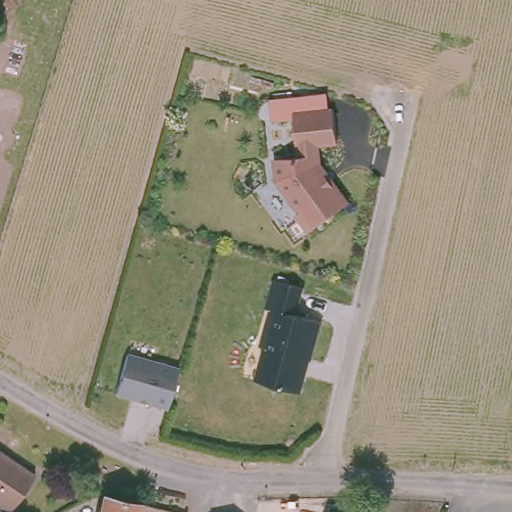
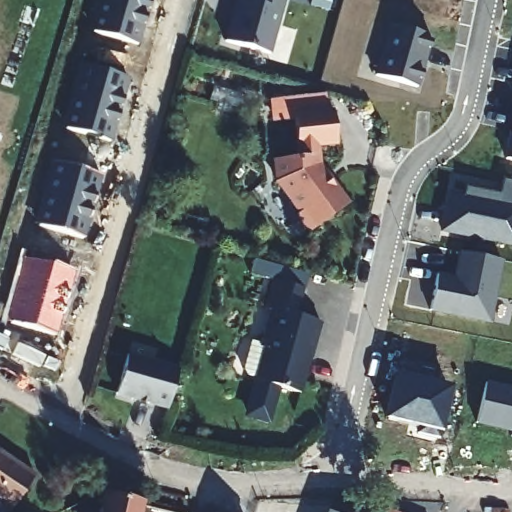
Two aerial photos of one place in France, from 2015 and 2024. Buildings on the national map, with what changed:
new [(101,0),(151,0),(138,43),(92,31),(101,0)]
new [(235,0),(249,0),(252,0),(285,0),(270,53),(224,42),(235,0)]
new [(390,26),(430,37),(425,54),(423,54),(421,66),(423,67),(417,87),(375,75),(390,26)]
new [(63,127),(81,63),(129,79),(111,142),(63,127)]
unchanged [(333,111),(337,144),(318,146),(320,169),(332,186),(334,185),(348,204),(308,233),(298,219),(299,213),(276,181),(273,160),(298,157),(293,115),(333,111)]
new [(511,132),(512,133),(512,162),(507,160),(511,132)]
new [(34,223),(52,161),(103,175),(85,237),(34,223)]
new [(450,213),(453,194),(463,196),(464,187),(487,191),(486,195),(498,197),(501,178),(512,181),(512,244),(442,230),(445,212),(450,213)]
new [(429,311),(438,273),(454,276),(460,252),(503,261),(490,324),(429,311)]
new [(6,322),(24,257),(74,271),(54,335),(6,322)]
unchanged [(302,289),(294,316),(321,323),(310,360),(306,359),(303,371),(304,374),(304,377),(299,394),(255,382),(264,349),(261,344),(270,311),(265,309),(273,280),(302,289)]
unchanged [(127,355),(178,370),(168,409),(116,394),(127,355)]
new [(383,418),(394,372),(452,386),(440,433),(383,418)]
new [(511,432),(476,424),(486,381),(512,388),(512,437),(510,436),(511,432)]
unchanged [(0,501),(0,447),(34,468),(9,506),(0,501)]
unchanged [(107,476),(143,484),(137,512),(99,512),(107,476)]
unchanged [(212,506),(238,512),(210,512),(212,506)]
unchanged [(328,511),(329,512),(327,512),(328,511)]

